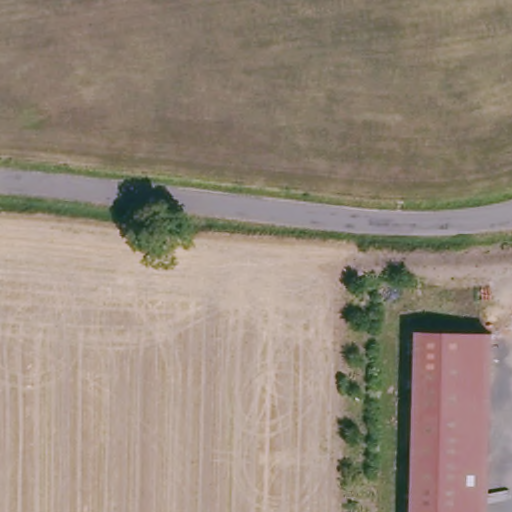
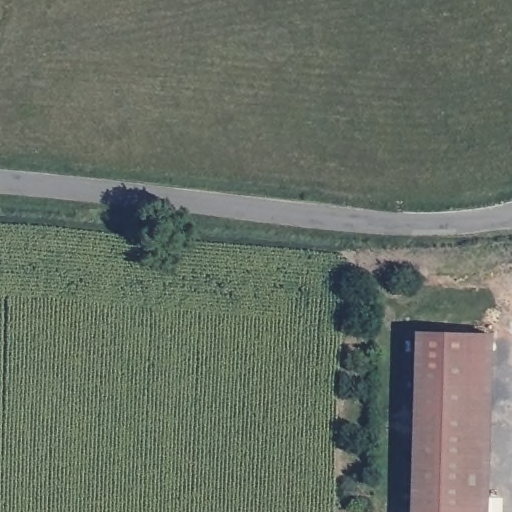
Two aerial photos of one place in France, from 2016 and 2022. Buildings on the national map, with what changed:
unchanged [(492,512),(417,512),(421,332),(496,334),(492,512)]

